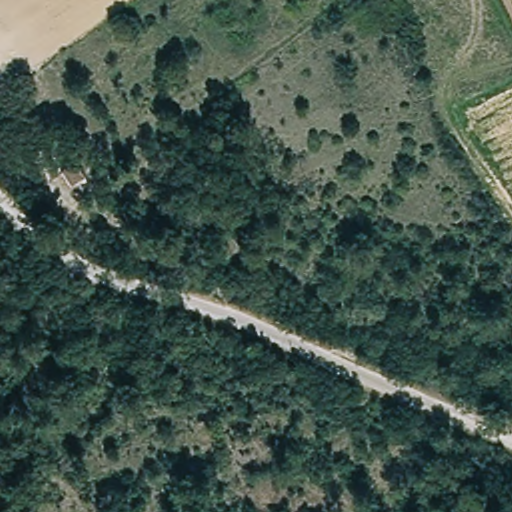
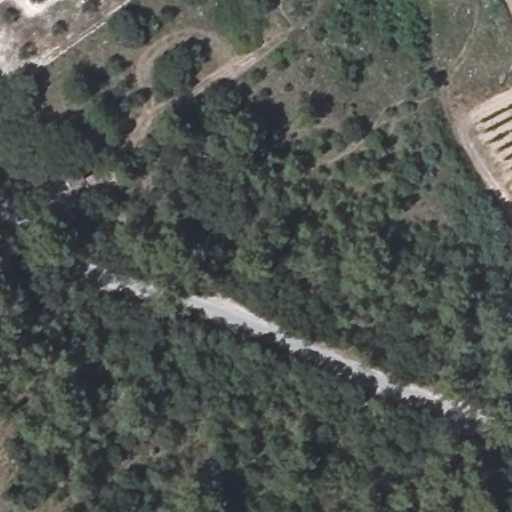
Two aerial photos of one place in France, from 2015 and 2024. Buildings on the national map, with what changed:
unchanged [(102,184),(91,193),(80,179),(91,169),(102,184)]

